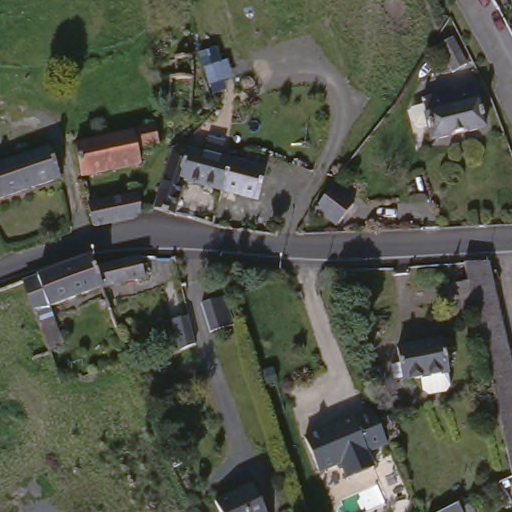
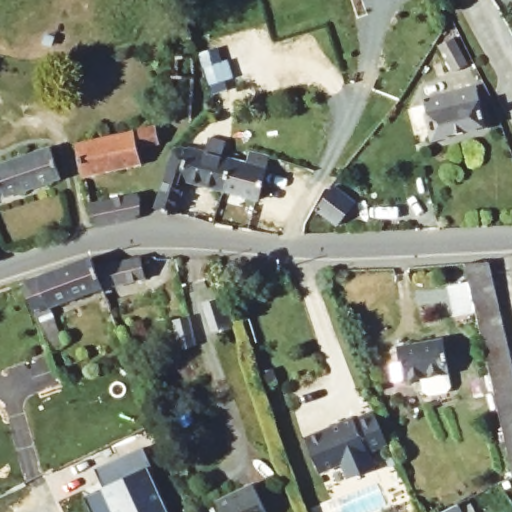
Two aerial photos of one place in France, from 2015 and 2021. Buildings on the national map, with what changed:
unchanged [(440,47),(454,40),(467,64),(453,72),(440,47)]
new [(219,53),(223,68),(230,67),(235,82),(213,89),(204,57),(219,53)]
unchanged [(423,98),(477,87),(486,127),(431,139),(423,98)]
unchanged [(83,180),(78,148),(156,131),(160,149),(140,153),(143,167),(83,180)]
unchanged [(223,195),(179,182),(176,189),(183,191),(174,218),(155,213),(177,153),(184,155),(189,157),(191,155),(208,160),(214,144),(224,147),(228,148),(223,165),(233,168),(223,195)]
unchanged [(0,164),(51,148),(61,177),(0,198),(0,164)]
unchanged [(273,164),(269,179),(259,205),(223,195),(233,168),(249,173),(254,157),(273,164)]
unchanged [(351,207),(332,230),(309,213),(329,191),(351,207)]
unchanged [(94,226),(89,205),(141,193),(141,203),(139,215),(94,226)]
unchanged [(29,314),(19,289),(36,285),(34,275),(96,256),(99,265),(138,260),(142,286),(103,291),(29,314)]
unchanged [(511,476),(489,388),(471,310),(450,314),(443,286),(464,280),(460,263),(483,261),(507,359),(512,380),(512,475),(511,476)]
unchanged [(228,326),(229,328),(204,334),(204,333),(198,304),(222,299),(228,326)]
unchanged [(173,351),(171,345),(168,318),(184,316),(188,339),(188,343),(188,344),(173,351)]
unchanged [(446,375),(449,389),(444,395),(427,397),(422,393),(420,379),(402,382),(402,380),(393,382),(391,367),(399,365),(397,351),(441,344),(447,375),(446,375)]
unchanged [(384,448),(364,455),(371,471),(344,482),(338,466),(316,475),(301,440),(350,421),(351,422),(371,414),(384,448)]
new [(94,466),(144,446),(152,465),(147,467),(166,512),(96,512),(87,490),(102,484),(94,466)]
unchanged [(250,483),(266,512),(220,512),(214,501),(250,483)]
unchanged [(463,512),(439,512),(459,503),(463,512)]

